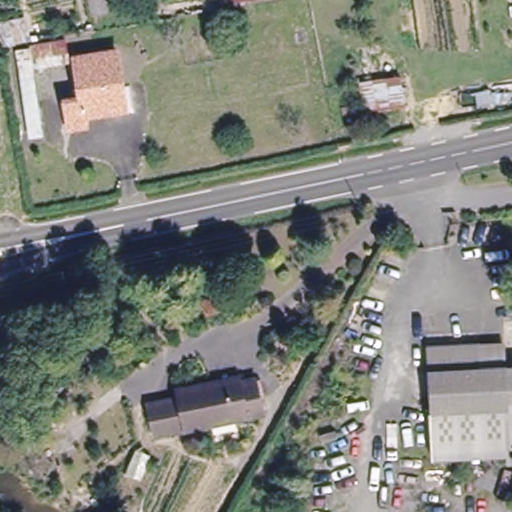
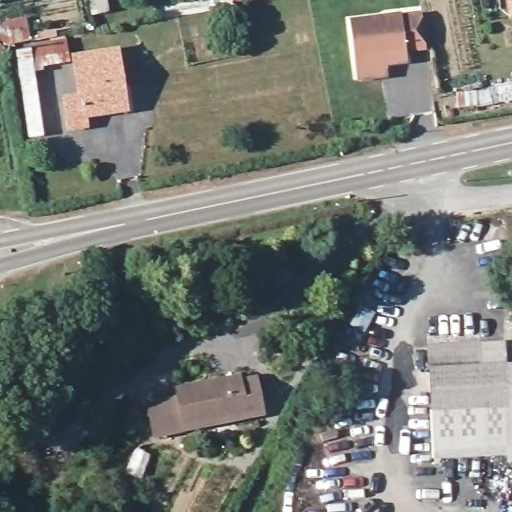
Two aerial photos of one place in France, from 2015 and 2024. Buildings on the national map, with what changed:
new [(507,0),(512,0),(512,20),(510,21),(507,0)]
new [(349,20),(401,13),(402,16),(422,13),(427,52),(407,56),(407,66),(387,70),(387,80),(357,84),(349,20)]
unchanged [(29,14),(32,42),(69,41),(71,67),(35,70),(33,56),(16,57),(15,46),(0,47),(0,17),(29,14)]
unchanged [(120,55),(126,109),(82,114),(82,124),(64,127),(61,92),(82,90),(81,58),(120,55)]
unchanged [(33,56),(35,70),(40,126),(24,130),(16,57),(33,56)]
demolished [(408,102),(360,107),(359,79),(403,76),(408,102)]
unchanged [(427,457),(424,347),(474,345),(474,368),(512,368),(512,462),(500,462),(500,456),(427,457)]
unchanged [(152,386),(178,382),(239,371),(240,382),(265,378),(270,412),(159,431),(152,386)]

